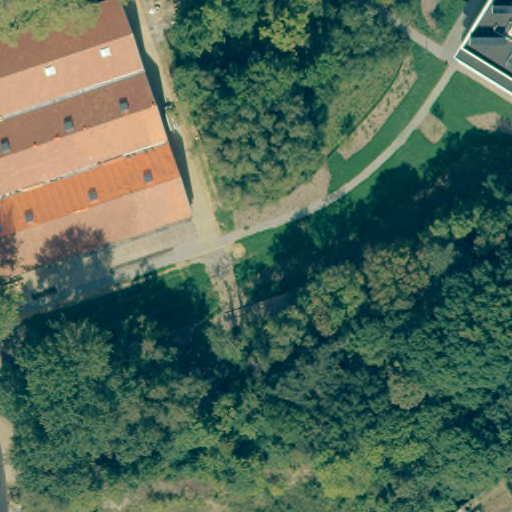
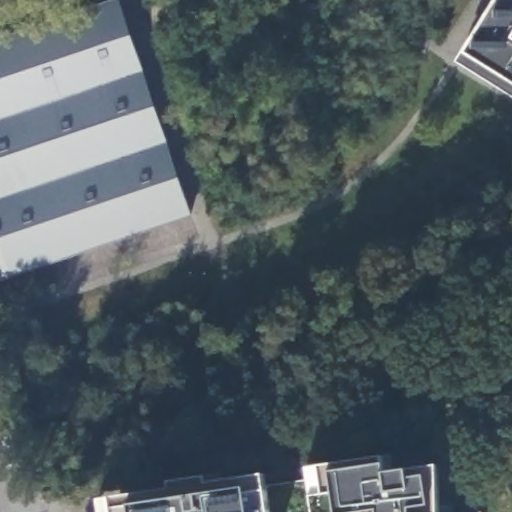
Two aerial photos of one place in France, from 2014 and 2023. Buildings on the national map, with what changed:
unchanged [(0,271),(0,34),(99,0),(117,0),(187,209),(0,271)]
unchanged [(512,35),(512,88),(487,74),(512,35)]
new [(321,467),(385,457),(385,464),(385,474),(407,471),(441,466),(441,512),(315,512),(310,469),(321,467)]
new [(174,491),(171,482),(210,476),(210,483),(267,475),(273,512),(102,512),(100,501),(174,491)]

